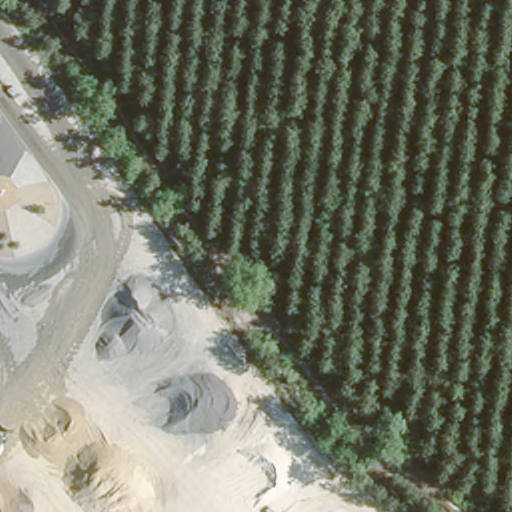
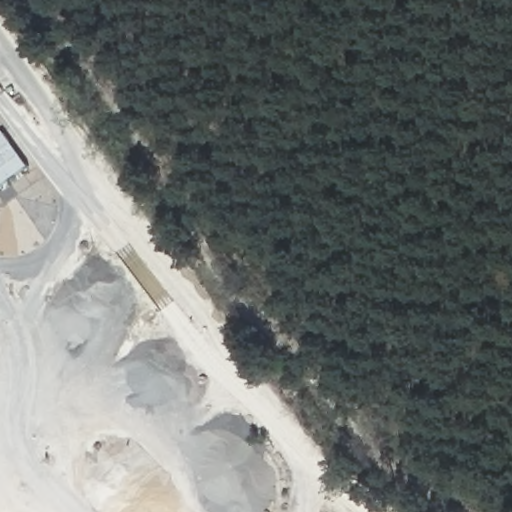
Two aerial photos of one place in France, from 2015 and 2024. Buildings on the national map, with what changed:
new [(5,134),(29,168),(0,188),(0,137),(5,134)]

